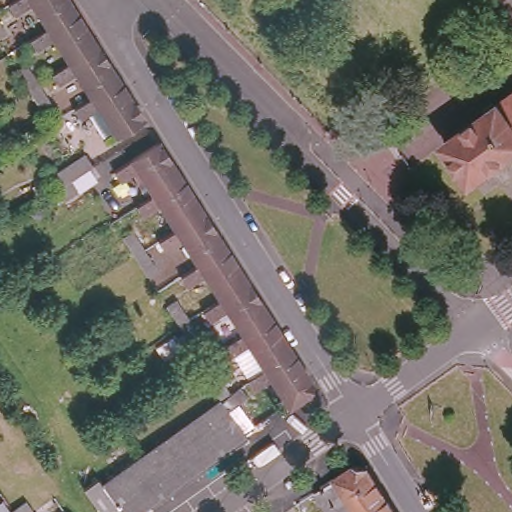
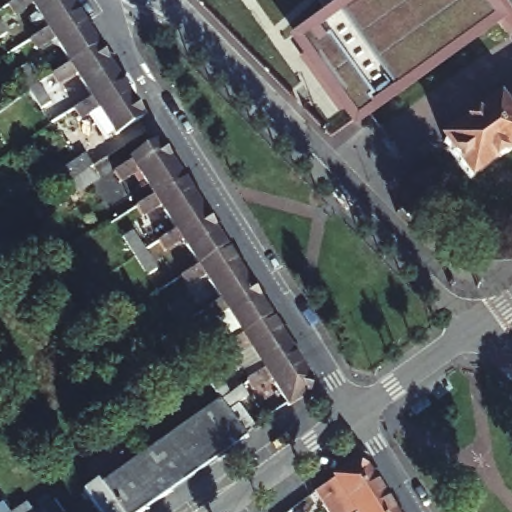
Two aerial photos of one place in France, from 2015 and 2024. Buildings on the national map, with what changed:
unchanged [(10,4),(16,0),(33,0),(15,11),(10,4)]
unchanged [(74,0),(78,7),(79,8),(53,25),(36,0),(74,0)]
new [(340,0),(492,0),(506,19),(353,132),(287,38),(340,0)]
demolished [(429,0),(431,3),(407,21),(414,29),(404,37),(417,54),(393,71),(362,28),(401,0),(429,0)]
unchanged [(58,33),(37,46),(32,38),(53,25),(79,8),(101,43),(75,59),(58,33)]
unchanged [(8,34),(0,39),(0,23),(8,34)]
unchanged [(123,78),(97,94),(80,67),(59,80),(54,72),(75,59),(101,43),(123,78)]
unchanged [(31,90),(20,73),(28,67),(39,84),(52,104),(43,110),(31,90)]
unchanged [(120,130),(103,103),(82,116),(77,108),(97,94),(123,78),(128,84),(146,113),(120,130)]
unchanged [(444,143),(497,105),(498,106),(512,96),(512,150),(471,179),(444,143)]
unchanged [(153,196),(135,168),(114,182),(110,174),(157,143),(171,165),(179,179),(153,196)]
unchanged [(58,190),(51,179),(86,156),(93,168),(74,180),(82,192),(65,203),(58,190)]
unchanged [(137,216),(132,209),(153,196),(179,179),(201,214),(175,231),(158,203),(137,216)]
unchanged [(218,240),(219,242),(223,248),(197,265),(180,239),(159,252),(154,244),(175,231),(201,214),(218,240)]
unchanged [(146,275),(135,257),(123,238),(132,232),(144,251),(156,269),(146,275)]
unchanged [(223,248),(246,284),(219,301),(203,274),(181,287),(176,279),(197,265),(223,248)]
unchanged [(246,284),(266,316),(267,317),(267,318),(241,334),(225,309),(204,322),(199,314),(219,301),(246,284)]
unchanged [(191,346),(179,326),(168,307),(176,302),(188,321),(201,340),(191,346)]
unchanged [(267,318),(290,354),(264,371),(247,343),(225,357),(220,348),(241,334),(267,318)]
unchanged [(269,379),(248,392),(243,384),(254,377),(264,371),(290,354),(309,383),(306,393),(286,406),(269,379)]
unchanged [(213,380),(222,375),(233,392),(238,388),(244,397),(229,409),(222,400),(224,398),(213,380)]
unchanged [(83,491),(97,481),(101,487),(110,481),(220,402),(243,434),(246,438),(144,512),(97,512),(83,491)]
unchanged [(358,472),(371,472),(389,501),(371,512),(330,512),(321,498),(358,472)]
unchanged [(33,494),(43,508),(37,512),(9,512),(10,511),(33,494)]
unchanged [(396,512),(371,512),(389,501),(396,512)]

